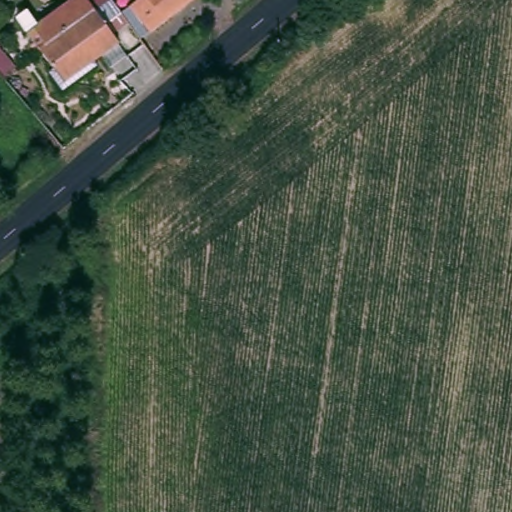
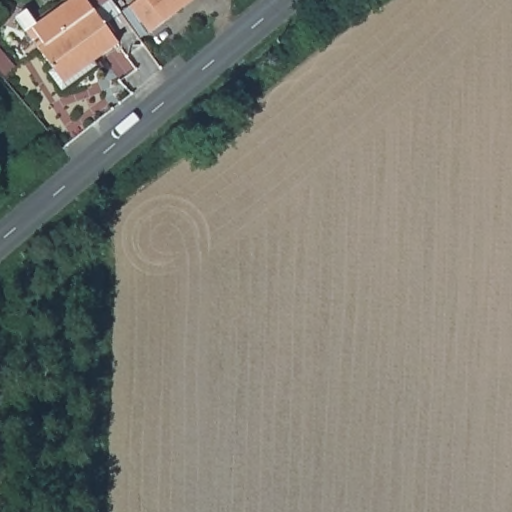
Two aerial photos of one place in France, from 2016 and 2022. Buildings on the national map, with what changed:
unchanged [(45,50),(48,45),(36,30),(73,2),(69,0),(114,0),(115,1),(99,11),(123,46),(69,85),(45,50)]
unchanged [(134,10),(146,0),(192,0),(155,33),(134,10)]
unchanged [(0,72),(0,49),(18,70),(6,80),(0,72)]

